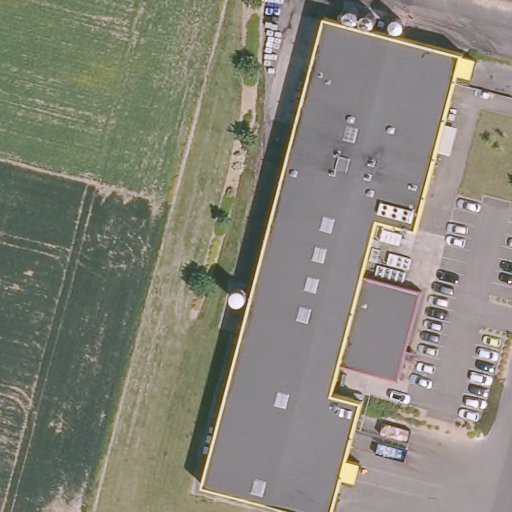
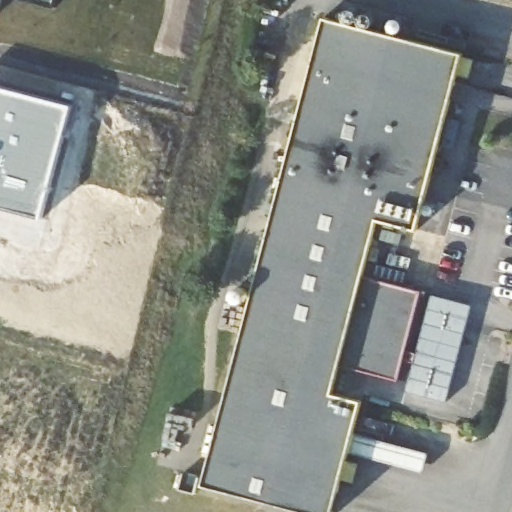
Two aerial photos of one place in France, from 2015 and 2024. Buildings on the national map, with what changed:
new [(53,5),(35,0),(55,0),(53,5)]
unchanged [(471,77),(459,74),(419,229),(379,220),(364,276),(423,291),(400,380),(342,363),(334,393),(363,399),(348,459),(359,462),(355,482),(343,480),(335,512),(306,512),(203,486),(324,17),(476,58),(471,77)]
new [(74,104),(43,217),(0,205),(0,84),(74,104)]
new [(446,403),(407,393),(432,296),(472,306),(446,403)]

